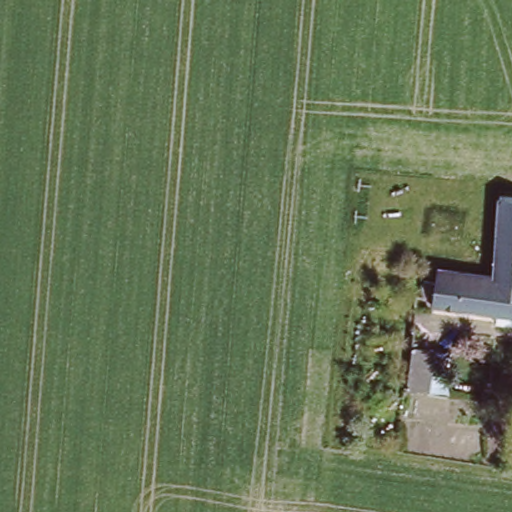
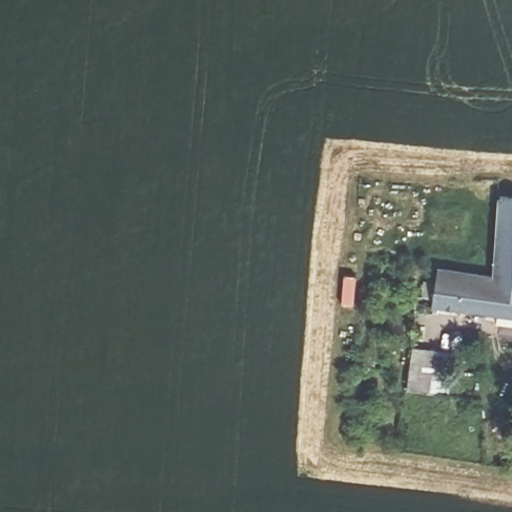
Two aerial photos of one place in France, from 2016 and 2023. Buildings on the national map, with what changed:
unchanged [(493,203),(512,205),(512,315),(435,304),(437,287),(441,265),(489,272),(493,203)]
unchanged [(439,346),(434,390),(406,387),(412,342),(439,346)]

